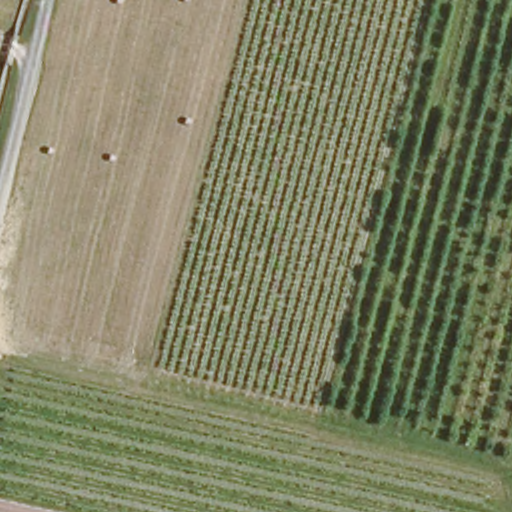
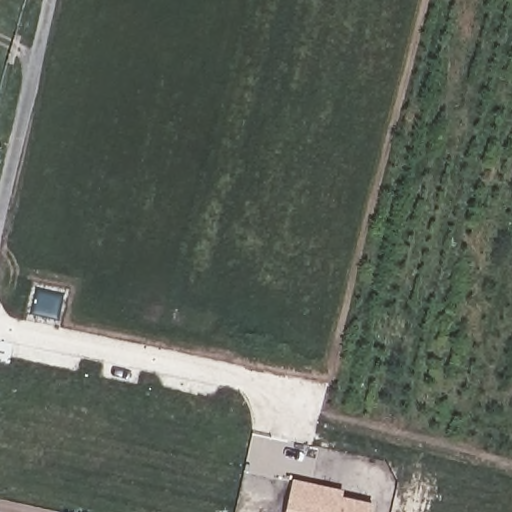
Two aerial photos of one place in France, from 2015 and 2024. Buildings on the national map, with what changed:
new [(345,490),(344,497),(375,505),(374,512),(285,512),(293,479),(345,490)]

